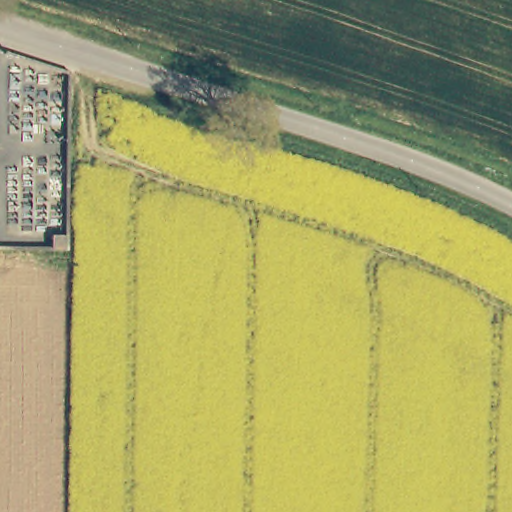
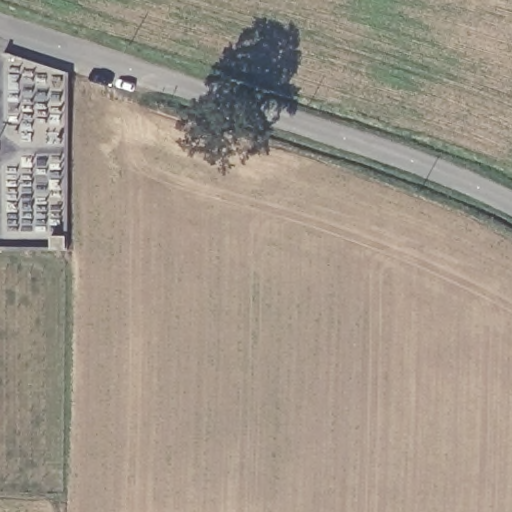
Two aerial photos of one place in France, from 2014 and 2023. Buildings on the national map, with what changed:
[]

